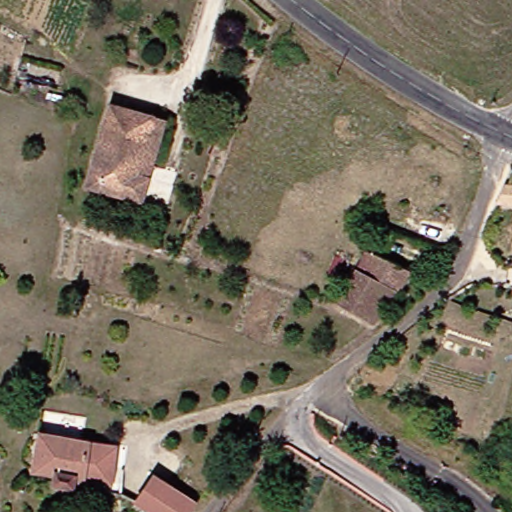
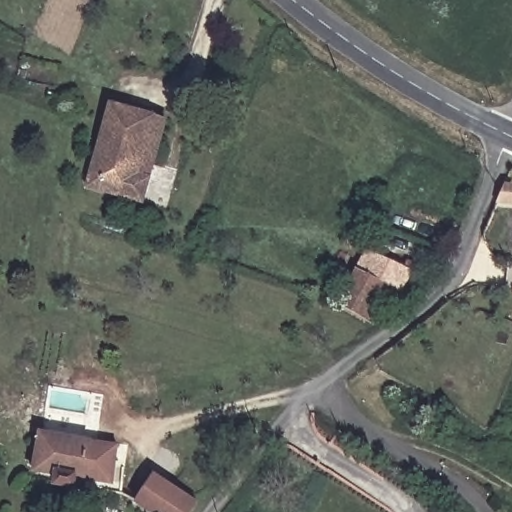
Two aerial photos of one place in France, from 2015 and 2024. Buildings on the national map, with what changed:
unchanged [(98,187),(120,105),(123,106),(161,117),(174,121),(158,179),(152,202),(98,187)]
unchanged [(512,203),(497,202),(500,194),(502,190),(512,191),(512,203)]
unchanged [(422,271),(383,325),(349,304),(376,252),(422,271)]
unchanged [(79,488),(59,485),(60,475),(38,471),(45,433),(123,446),(118,485),(90,480),(88,490),(79,488)]
unchanged [(141,508),(146,502),(163,475),(206,502),(200,512),(146,512),(141,508)]

